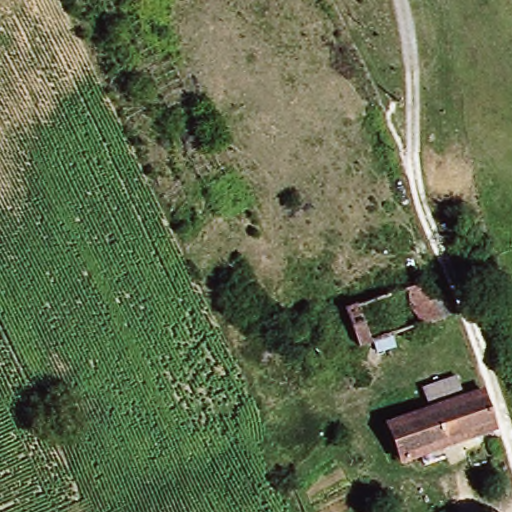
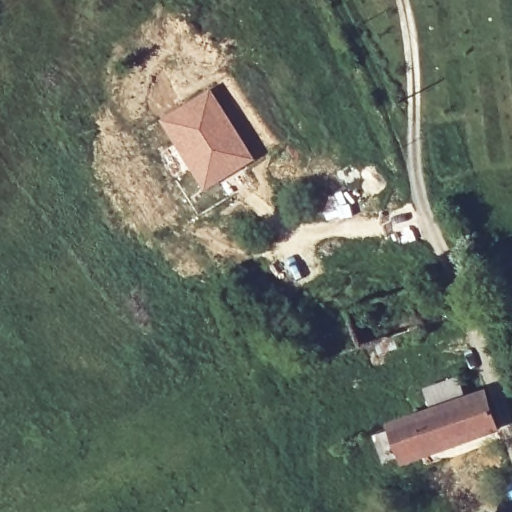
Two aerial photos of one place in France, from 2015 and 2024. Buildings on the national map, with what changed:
new [(209,88),(255,160),(202,192),(158,121),(209,88)]
unchanged [(429,282),(444,321),(424,326),(412,288),(429,282)]
unchanged [(367,304),(379,338),(360,346),(347,311),(367,304)]
unchanged [(421,453),(402,461),(399,455),(387,426),(427,407),(421,387),(451,377),(460,395),(482,387),(496,424),(449,443),(454,454),(425,464),(421,453)]
unchanged [(503,512),(497,501),(512,496),(512,512),(503,512)]

